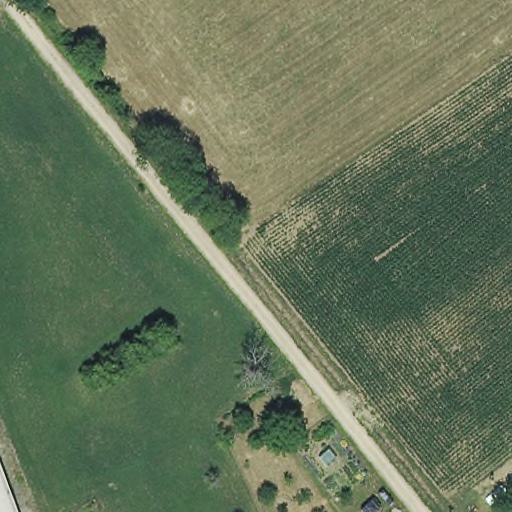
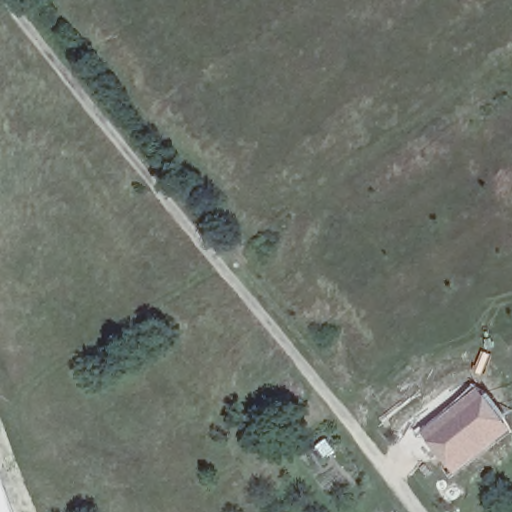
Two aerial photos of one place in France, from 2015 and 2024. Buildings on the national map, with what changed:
new [(476,384),(512,428),(452,475),(418,432),(476,384)]
unchanged [(0,493),(0,473),(6,491),(0,493)]
unchanged [(13,512),(0,512),(0,493),(6,491),(13,512)]

